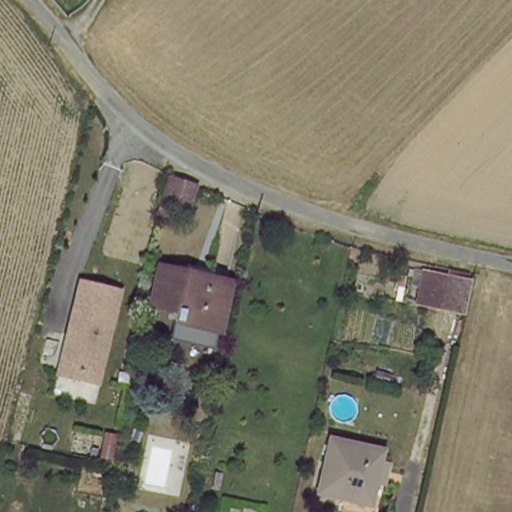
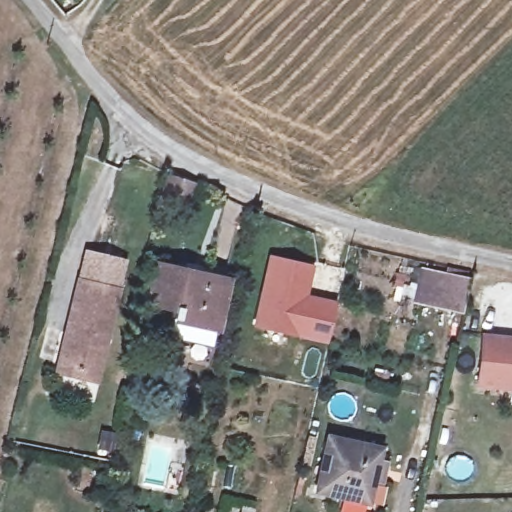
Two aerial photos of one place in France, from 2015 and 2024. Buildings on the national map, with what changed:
unchanged [(165,205),(158,202),(166,177),(170,177),(192,186),(184,212),(165,205)]
new [(253,326),(269,256),(313,266),(307,296),(336,302),(326,343),(253,326)]
new [(440,307),(413,302),(420,267),(447,272),(440,307)]
unchanged [(217,322),(174,316),(175,304),(152,301),(156,272),(223,282),(217,322)]
unchanged [(459,321),(438,316),(447,272),(468,277),(459,321)]
unchanged [(54,370),(76,277),(115,287),(93,379),(54,370)]
new [(481,333),(512,336),(512,392),(475,387),(481,333)]
unchanged [(365,505),(319,494),(330,442),(376,453),(365,505)]

